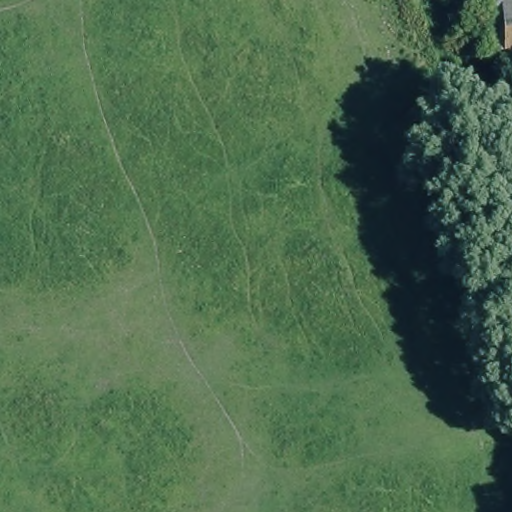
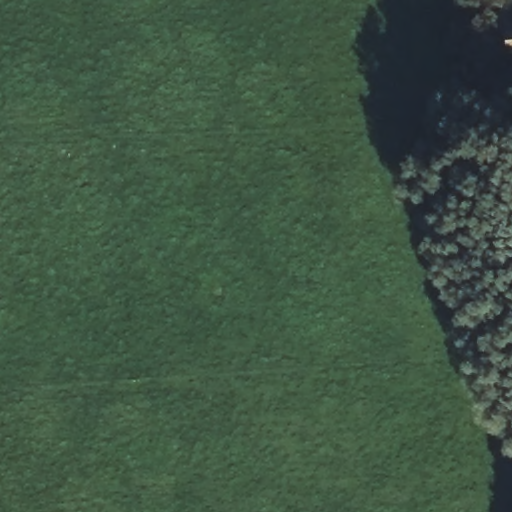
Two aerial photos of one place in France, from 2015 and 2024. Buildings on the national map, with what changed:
unchanged [(505,61),(503,11),(512,11),(512,61),(505,61)]

